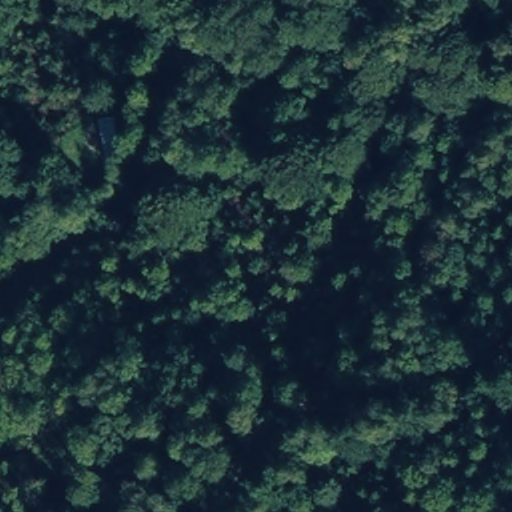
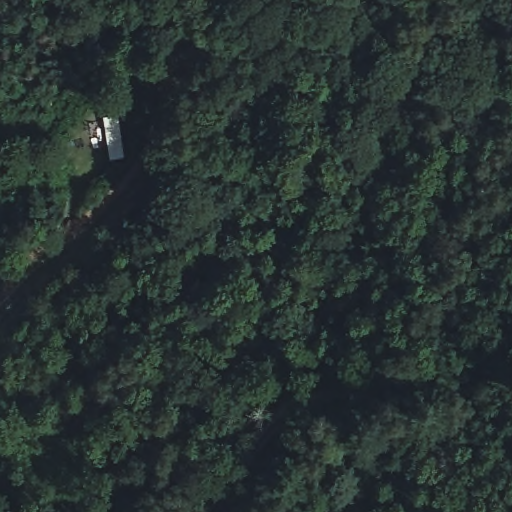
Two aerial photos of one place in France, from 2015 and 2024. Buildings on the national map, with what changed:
[]

